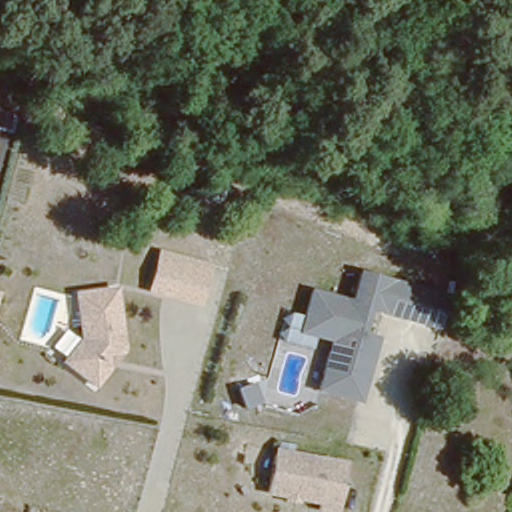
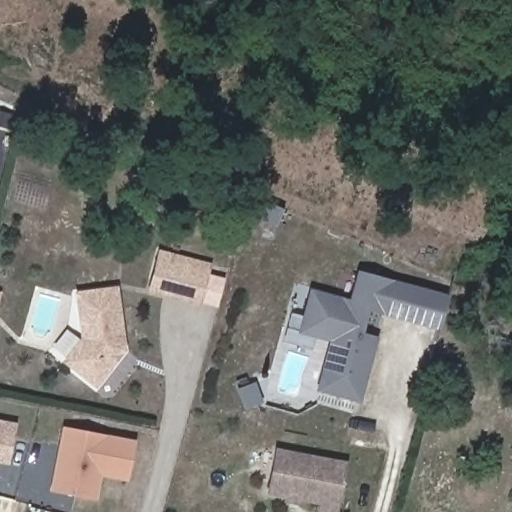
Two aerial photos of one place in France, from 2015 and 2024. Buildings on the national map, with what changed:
unchanged [(205,199),(186,191),(194,174),(212,181),(205,199)]
unchanged [(155,295),(162,266),(164,256),(208,266),(205,276),(199,305),(155,295)]
unchanged [(372,351),(359,402),(320,391),(332,342),(301,333),(311,295),(351,305),(358,275),(407,288),(400,317),(365,308),(357,336),(375,341),(372,351)]
unchanged [(407,288),(408,285),(451,296),(442,331),(399,321),(400,317),(407,288)]
unchanged [(77,295),(115,289),(126,348),(100,385),(69,363),(85,340),(77,295)]
new [(16,422),(7,466),(0,465),(0,419),(16,422)]
new [(65,426),(135,440),(127,479),(100,473),(94,500),(52,491),(65,426)]
unchanged [(330,512),(317,510),(319,502),(267,491),(276,450),(345,465),(335,512),(330,512)]

